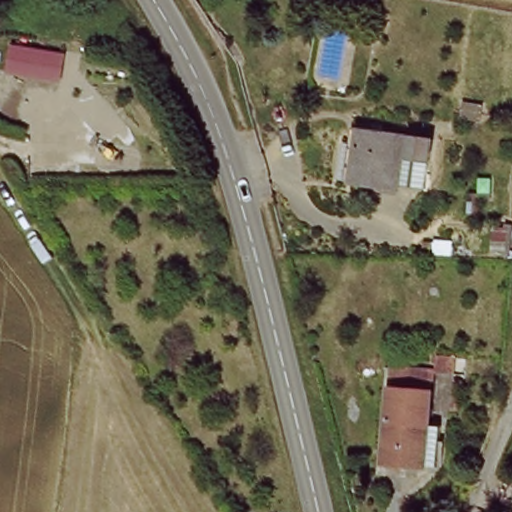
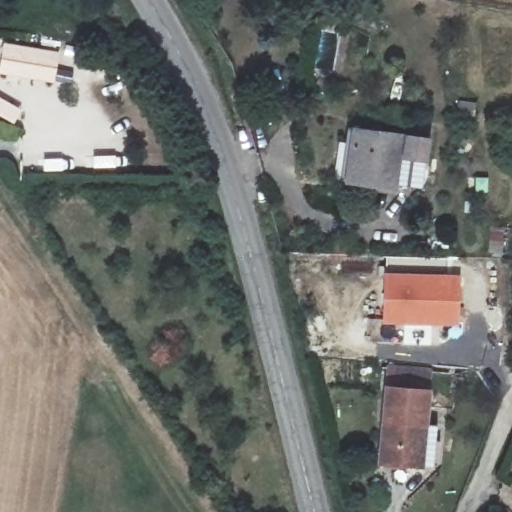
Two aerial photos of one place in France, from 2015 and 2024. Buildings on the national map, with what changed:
unchanged [(19,8),(18,39),(36,40),(33,64),(13,63),(14,57),(0,57),(0,9),(19,8)]
unchanged [(415,164),(398,161),(396,188),(346,181),(352,128),(418,137),(422,137),(420,164),(415,164)]
new [(385,273),(461,274),(460,326),(384,323),(385,273)]
unchanged [(383,476),(379,401),(423,400),(426,475),(383,476)]

